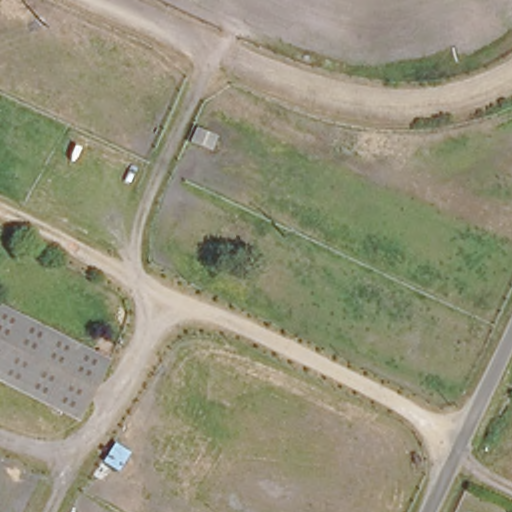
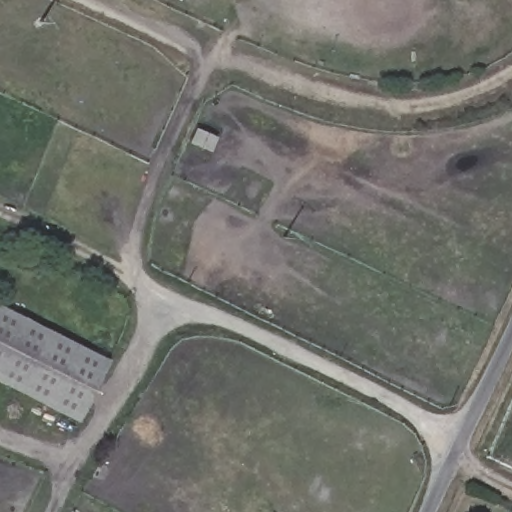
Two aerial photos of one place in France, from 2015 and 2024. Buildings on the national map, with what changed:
unchanged [(111,360),(79,425),(0,387),(0,304),(111,360)]

